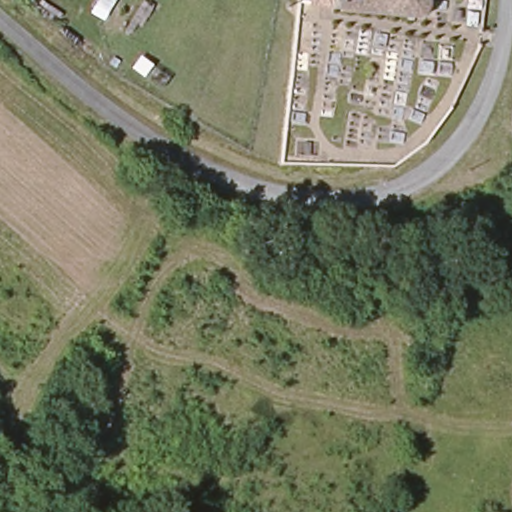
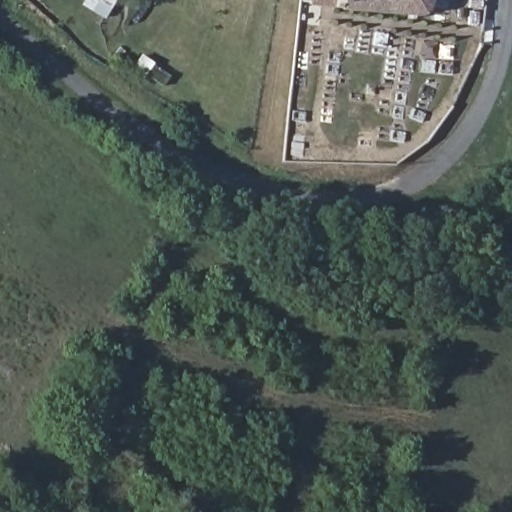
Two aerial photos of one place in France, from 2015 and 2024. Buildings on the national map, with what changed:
unchanged [(446,15),(439,21),(314,7),(314,0),(449,0),(450,5),(446,15)]

